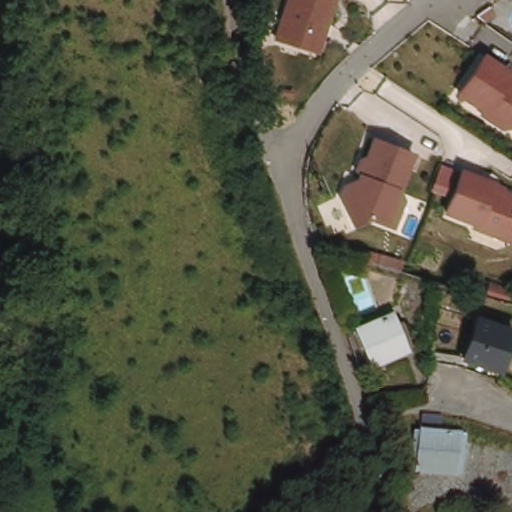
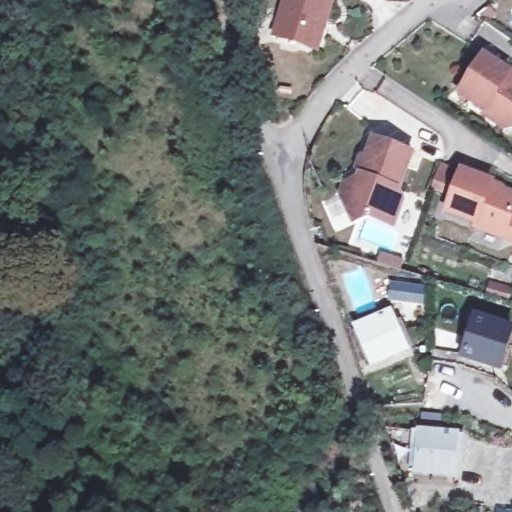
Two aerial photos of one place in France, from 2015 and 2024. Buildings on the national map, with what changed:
unchanged [(277,38),(289,0),(334,0),(318,50),(277,38)]
unchanged [(478,111),(480,107),(456,92),(481,53),(506,69),(504,72),(512,77),(512,123),(500,126),(478,111)]
unchanged [(390,220),(373,214),(357,222),(343,194),(347,182),(357,186),(362,172),(358,167),(362,156),(368,152),(375,136),(414,149),(402,187),(406,196),(397,222),(390,220)]
unchanged [(442,170),(457,176),(450,199),(435,194),(442,170)]
unchanged [(495,185),(493,189),(512,195),(512,230),(509,239),(478,229),(480,225),(450,216),(463,174),(495,185)]
unchanged [(405,345),(369,360),(350,323),(388,308),(405,345)]
unchanged [(510,327),(499,369),(463,359),(475,316),(510,327)]
unchanged [(437,439),(455,438),(455,481),(415,479),(414,419),(436,419),(437,439)]

